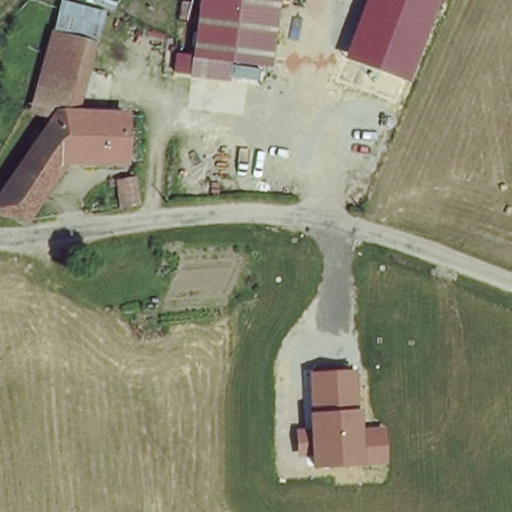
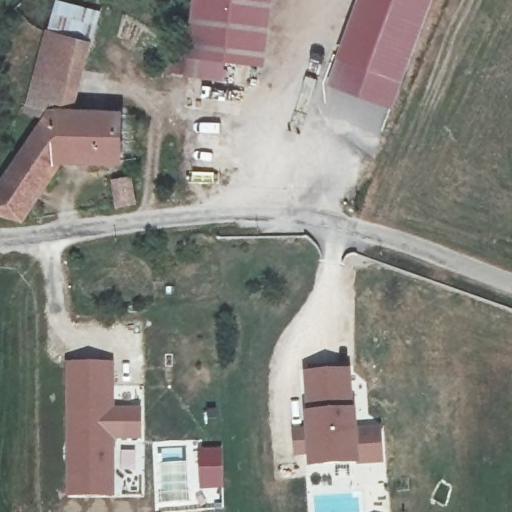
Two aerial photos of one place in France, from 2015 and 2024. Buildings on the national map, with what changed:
unchanged [(65,114),(73,59),(75,37),(43,31),(55,0),(57,0),(100,10),(76,114),(65,114)]
unchanged [(171,54),(188,55),(194,0),(270,0),(262,67),(226,62),(221,83),(168,76),(171,54)]
unchanged [(361,0),(435,0),(404,82),(340,59),(361,0)]
unchanged [(58,113),(35,108),(31,107),(43,31),(75,37),(73,59),(65,114),(58,113)]
unchanged [(79,114),(126,111),(127,163),(80,167),(76,114),(79,114)]
unchanged [(80,167),(62,169),(35,150),(58,113),(65,114),(68,114),(76,114),(80,167)]
unchanged [(14,226),(0,220),(0,205),(30,158),(35,150),(62,169),(26,225),(14,226)]
unchanged [(141,210),(125,209),(125,180),(141,180),(141,210)]
new [(114,497),(66,497),(67,363),(114,364),(114,408),(141,408),(141,440),(114,440),(114,497)]
unchanged [(354,409),(357,409),(359,430),(381,428),(384,463),(309,469),(308,456),(295,457),(293,429),(306,428),(304,373),(352,371),(354,409)]

